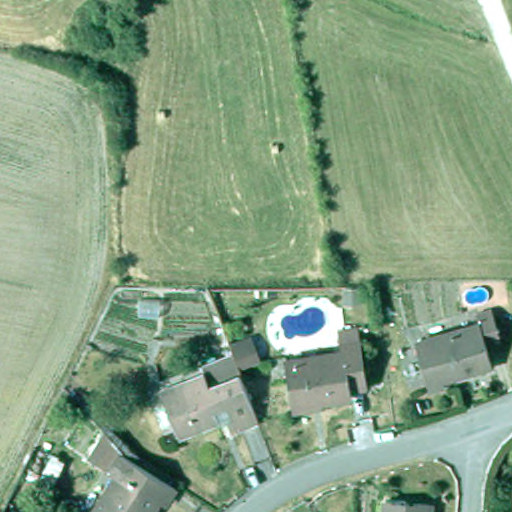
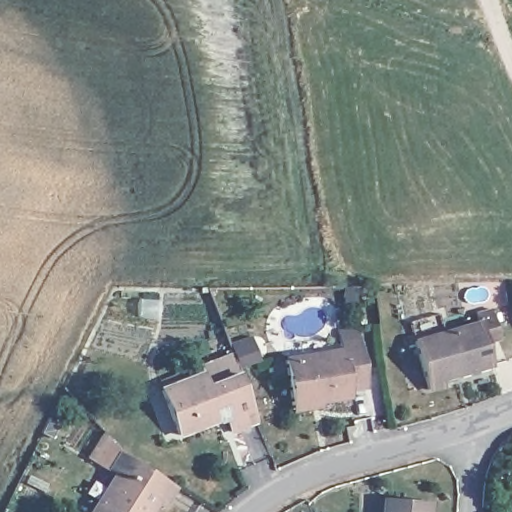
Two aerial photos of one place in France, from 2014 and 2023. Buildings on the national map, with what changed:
unchanged [(502,335),(487,340),(494,363),(444,378),(445,384),(432,387),(417,340),(482,321),(478,311),(494,306),(502,335)]
unchanged [(298,416),(297,410),(290,366),(345,357),(343,348),(362,345),(368,390),(352,392),(354,400),(325,405),(326,412),(298,416)]
unchanged [(227,416),(232,414),(226,397),(212,402),(217,414),(177,428),(160,385),(202,368),(207,381),(239,370),(258,418),(232,428),(227,416)]
unchanged [(165,500),(156,512),(98,512),(122,473),(115,468),(125,452),(130,456),(170,481),(180,487),(169,502),(165,500)]
unchanged [(409,505),(433,506),(433,512),(388,512),(389,500),(410,500),(409,505)]

